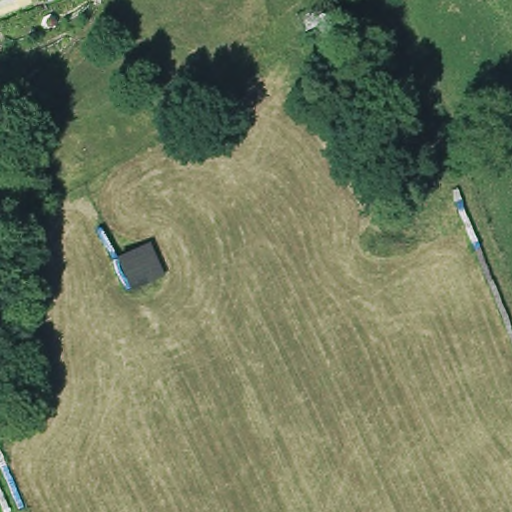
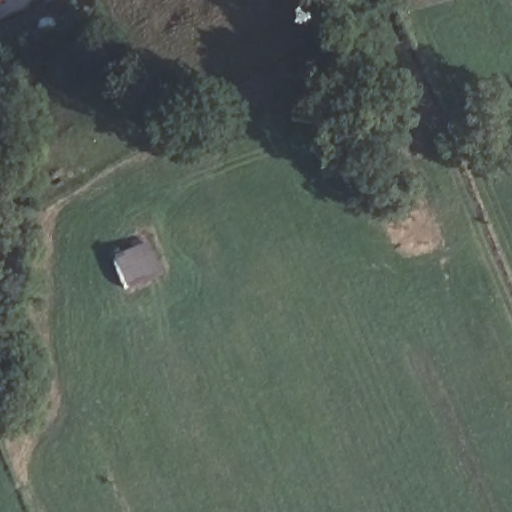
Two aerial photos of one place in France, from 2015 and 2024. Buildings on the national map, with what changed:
unchanged [(2,31),(13,29),(16,36),(4,39),(2,31)]
unchanged [(131,283),(119,255),(150,241),(161,274),(131,283)]

